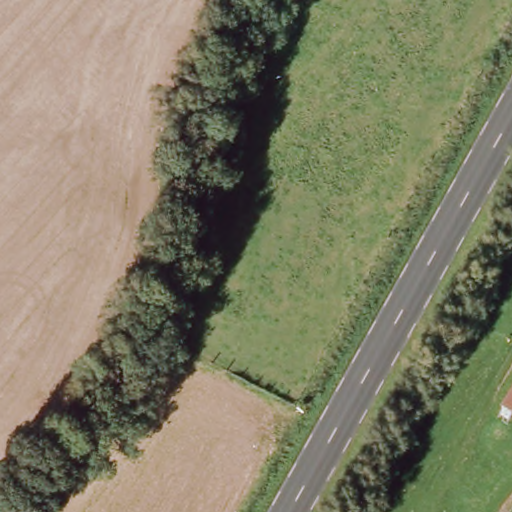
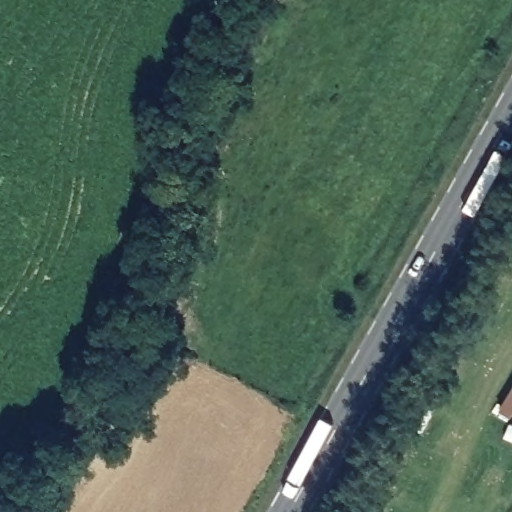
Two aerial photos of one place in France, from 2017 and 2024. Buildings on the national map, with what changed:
unchanged [(512,387),(512,415),(500,408),(512,387)]

